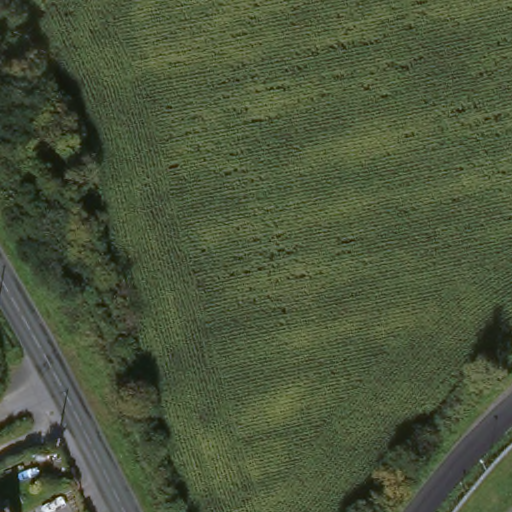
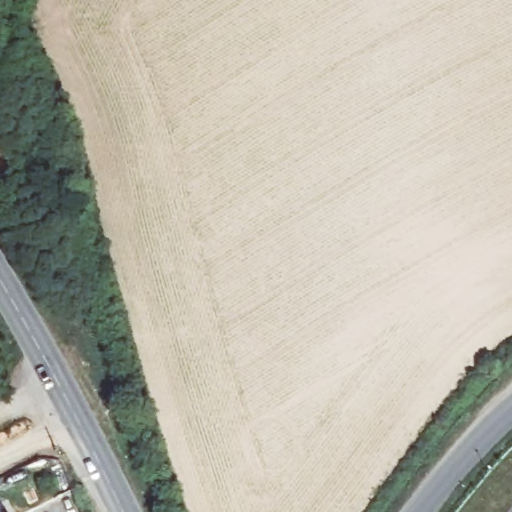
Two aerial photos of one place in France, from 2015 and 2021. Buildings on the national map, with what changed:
unchanged [(2,512),(0,512),(0,507),(2,512)]

